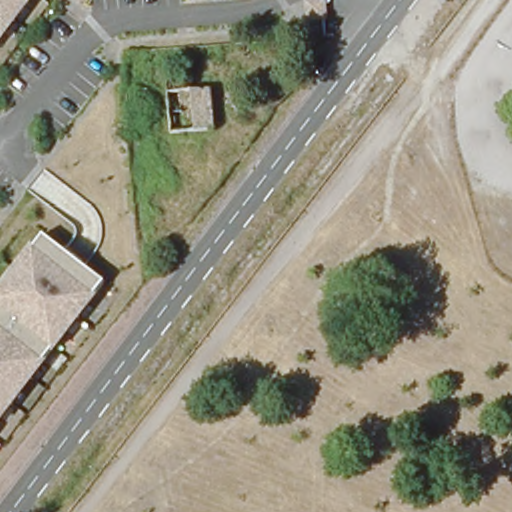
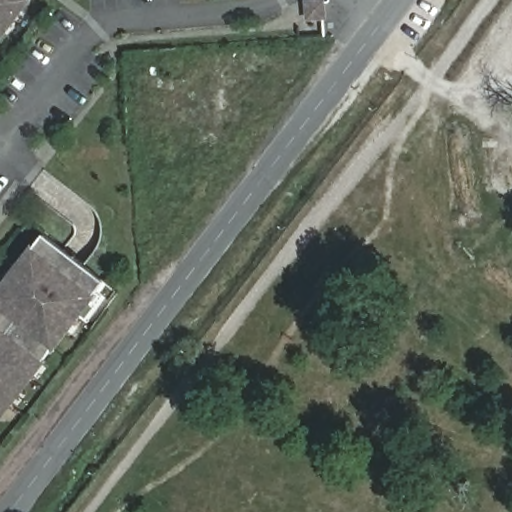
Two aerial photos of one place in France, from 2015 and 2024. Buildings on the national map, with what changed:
unchanged [(0,35),(0,0),(27,0),(0,35)]
unchanged [(327,19),(306,21),(306,0),(326,0),(327,19)]
demolished [(212,127),(171,131),(168,95),(210,92),(212,127)]
unchanged [(41,232),(102,279),(36,366),(0,412),(0,285),(4,281),(41,232)]

